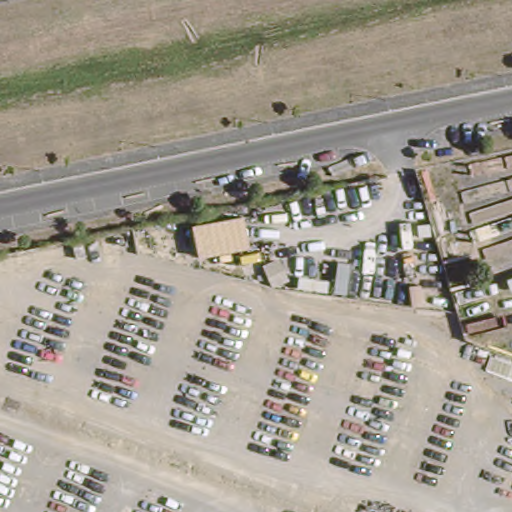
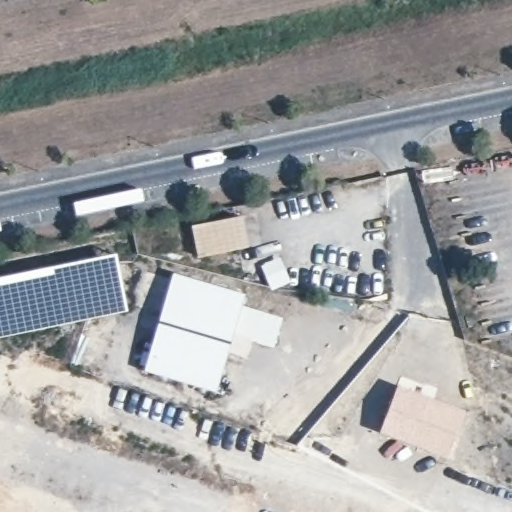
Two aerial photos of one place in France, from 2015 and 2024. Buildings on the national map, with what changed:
unchanged [(188,226),(242,215),(247,247),(195,257),(188,226)]
new [(115,255),(127,311),(0,338),(0,279),(115,255)]
new [(172,279),(163,310),(134,300),(142,270),(172,279)]
new [(173,275),(245,294),(216,390),(145,369),(173,275)]
new [(272,347),(232,334),(242,305),(282,318),(272,347)]
new [(397,384),(466,411),(447,459),(378,432),(397,384)]

